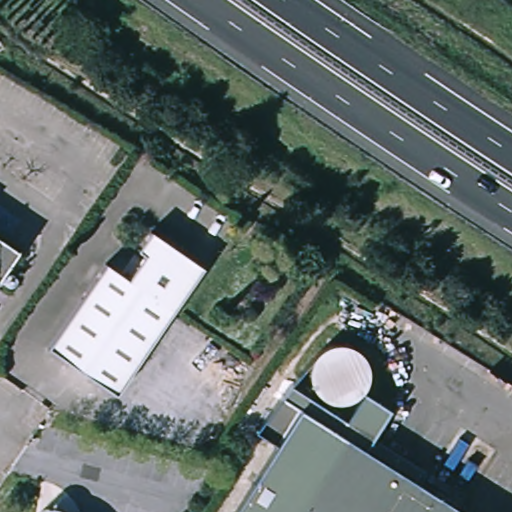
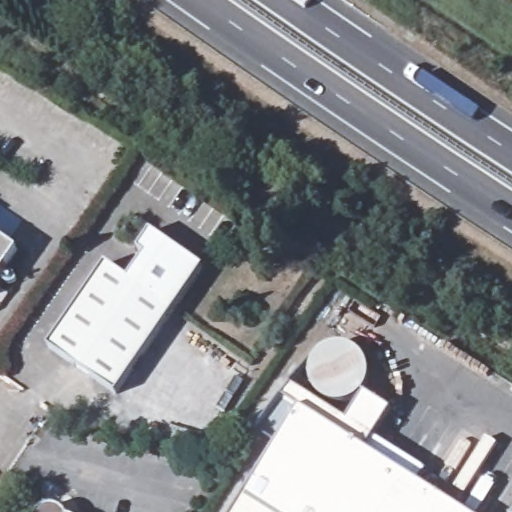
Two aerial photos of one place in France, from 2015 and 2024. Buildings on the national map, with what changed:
unchanged [(112,395),(43,350),(98,266),(121,281),(137,257),(130,252),(143,232),(196,268),(112,395)]
unchanged [(0,267),(0,245),(11,252),(0,267)]
unchanged [(271,446),(250,433),(278,387),(307,349),(312,345),(318,342),(325,340),(334,340),(341,341),(350,345),(357,350),(363,358),(366,368),(367,380),(365,383),(362,393),(390,412),(364,452),(458,512),(229,512),(271,446)]
unchanged [(36,510),(42,507),(51,506),(60,511),(61,512),(35,512),(36,510)]

